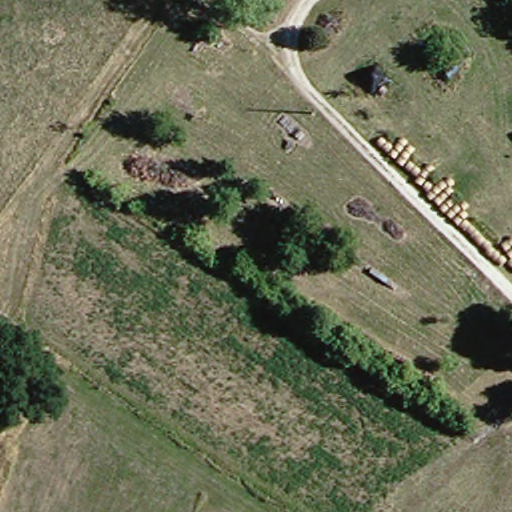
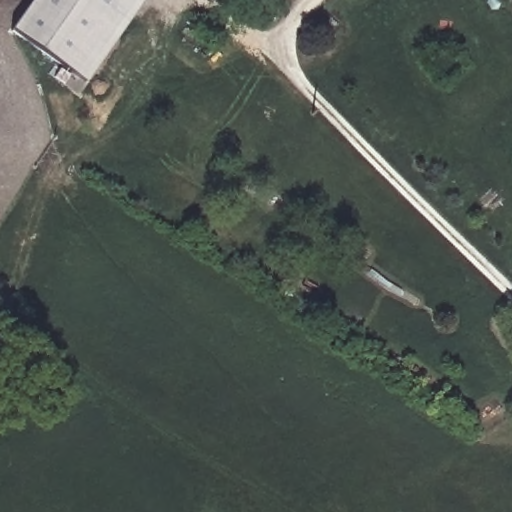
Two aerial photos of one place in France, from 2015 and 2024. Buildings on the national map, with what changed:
new [(85,81),(11,30),(33,0),(144,0),(85,81)]

